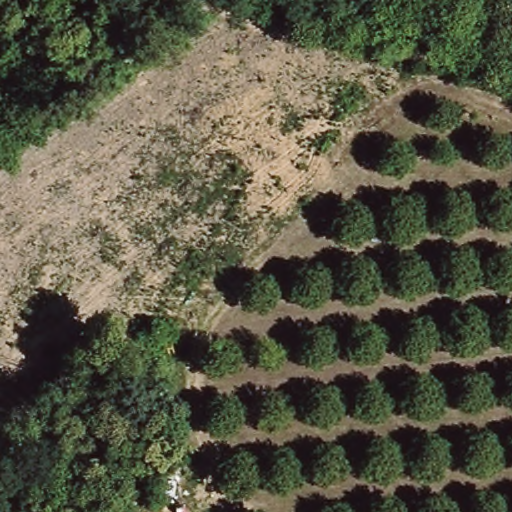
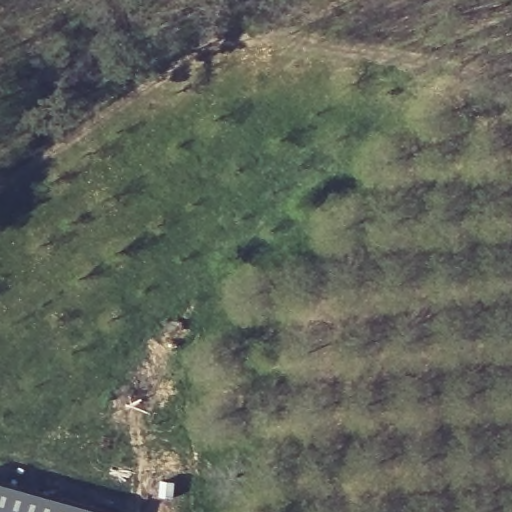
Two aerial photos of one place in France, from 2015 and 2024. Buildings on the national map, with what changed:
new [(0,481),(111,512),(0,512),(0,481)]

